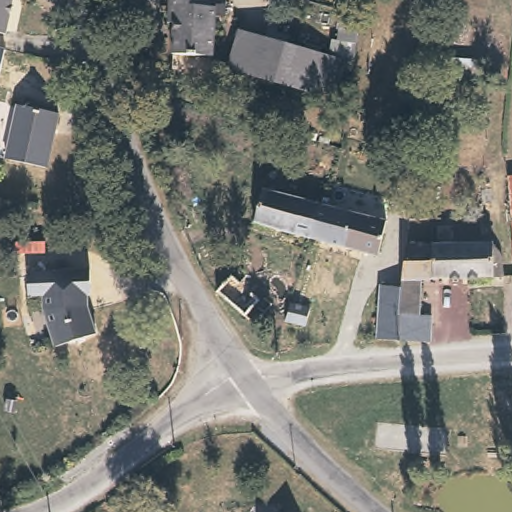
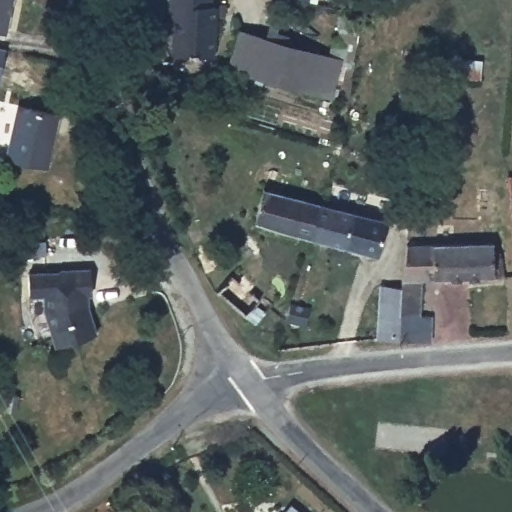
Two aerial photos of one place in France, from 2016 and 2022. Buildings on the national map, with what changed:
unchanged [(7,31),(0,30),(0,0),(14,0),(7,31)]
unchanged [(207,7),(214,7),(212,53),(172,51),(173,19),(169,19),(170,0),(207,0),(207,7)]
unchanged [(335,57),(324,96),(230,71),(241,32),(335,57)]
unchanged [(7,49),(1,77),(0,79),(0,48),(7,49)]
unchanged [(61,112),(49,166),(7,157),(19,103),(61,112)]
unchanged [(382,126),(377,156),(357,151),(362,123),(382,126)]
unchanged [(319,201),(309,240),(252,224),(262,186),(319,201)]
unchanged [(384,221),(373,258),(309,240),(319,201),(384,221)]
unchanged [(375,315),(376,281),(395,282),(408,243),(490,246),(500,261),(500,280),(416,279),(414,314),(427,315),(426,342),(393,344),(393,338),(374,338),(375,315)]
unchanged [(92,294),(88,294),(86,306),(91,312),(94,335),(53,347),(42,309),(42,294),(27,295),(27,273),(57,272),(60,270),(92,269),(92,294)]
unchanged [(257,299),(241,316),(215,290),(231,273),(257,299)]

